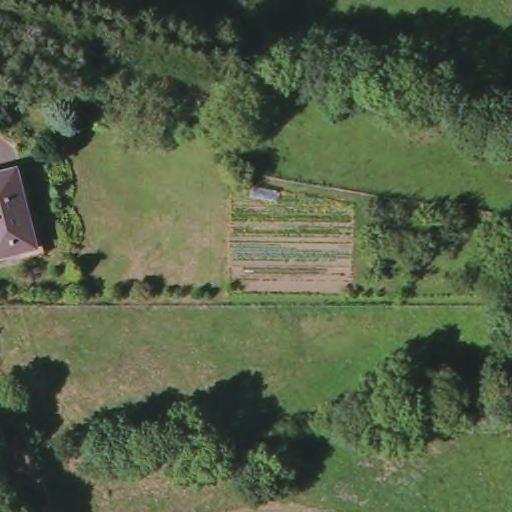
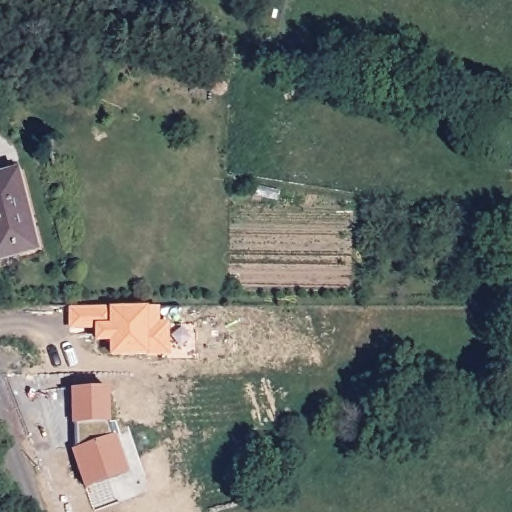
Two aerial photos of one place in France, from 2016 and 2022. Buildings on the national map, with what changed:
unchanged [(32,247),(0,256),(0,174),(14,171),(32,247)]
new [(71,306),(158,306),(157,326),(167,326),(167,355),(112,354),(112,340),(97,339),(97,327),(70,327),(71,306)]
new [(107,388),(108,425),(126,475),(86,488),(73,450),(72,389),(107,388)]

